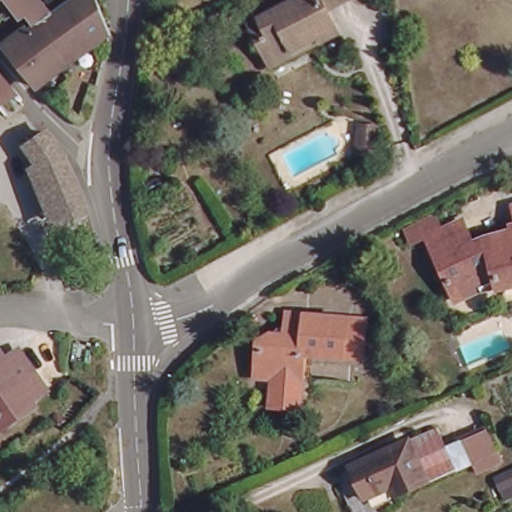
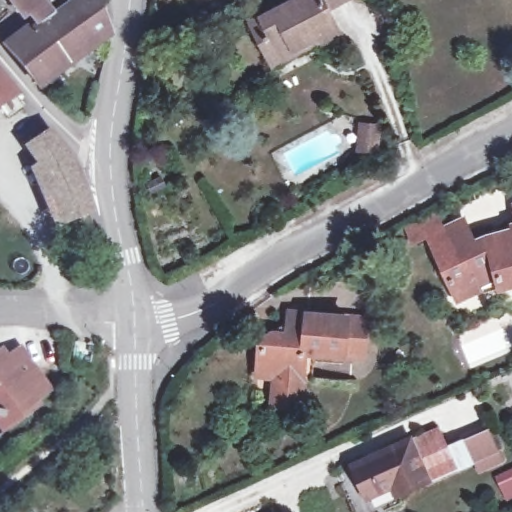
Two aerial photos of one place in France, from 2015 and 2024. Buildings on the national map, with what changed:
unchanged [(56,13),(52,16),(55,24),(59,33),(61,40),(39,57),(27,66),(11,47),(44,21),(33,8),(28,12),(18,0),(45,0),(56,13)]
unchanged [(56,13),(74,0),(100,0),(114,32),(114,33),(43,86),(27,66),(39,57),(61,40),(59,33),(55,24),(52,16),(56,13)]
unchanged [(260,38),(248,16),(279,0),(330,0),(325,3),(338,26),(321,36),(319,32),(280,53),(270,59),(260,38)]
unchanged [(21,87),(26,93),(0,109),(0,63),(21,87)]
unchanged [(47,135),(55,146),(71,180),(43,194),(32,172),(37,169),(25,150),(47,135)]
unchanged [(71,180),(86,213),(74,218),(58,225),(43,194),(71,180)]
unchanged [(501,280),(461,300),(437,247),(439,246),(433,232),(464,219),(476,244),(490,238),(512,232),(512,284),(504,286),(501,280)]
unchanged [(280,374),(262,373),(264,340),(274,334),(283,335),(283,338),(291,338),(293,313),(353,318),(371,319),(368,358),(350,356),(308,353),(303,406),(278,404),(280,374)]
unchanged [(12,352),(41,391),(28,401),(27,409),(13,419),(8,411),(0,416),(0,361),(12,352)]
unchanged [(438,425),(457,468),(428,481),(409,438),(438,425)]
unchanged [(428,481),(398,495),(393,482),(364,495),(350,465),(409,438),(428,481)]

